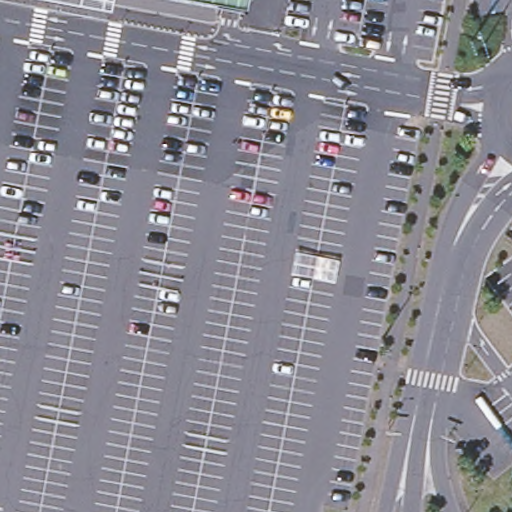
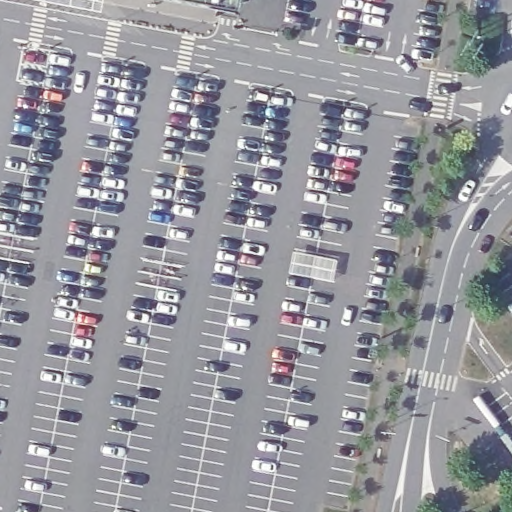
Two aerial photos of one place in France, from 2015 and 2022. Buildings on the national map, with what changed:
unchanged [(246,1),(243,0),(247,0),(246,1)]

